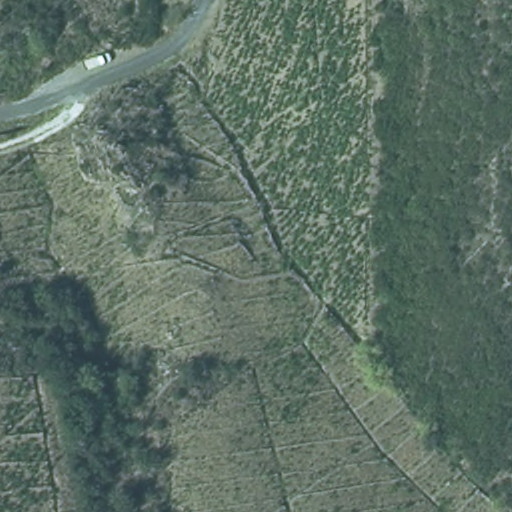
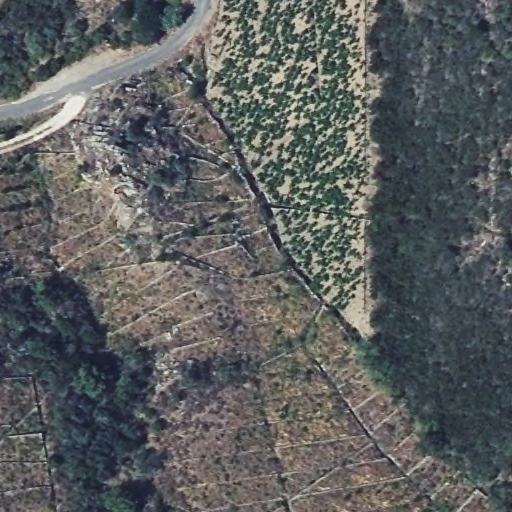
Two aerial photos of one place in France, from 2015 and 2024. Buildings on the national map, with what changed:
[]

